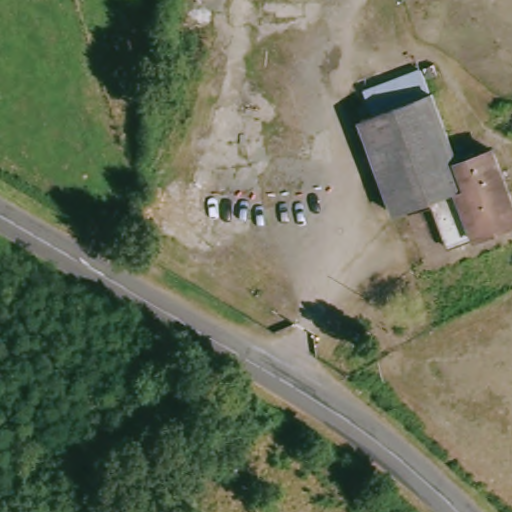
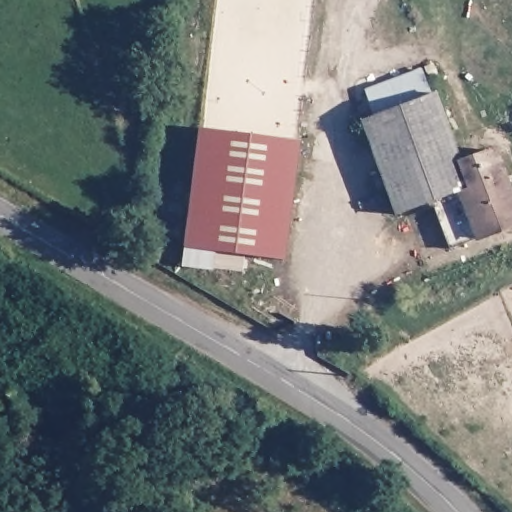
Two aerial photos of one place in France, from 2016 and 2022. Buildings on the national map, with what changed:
unchanged [(411,68),(419,90),(369,111),(360,87),(411,68)]
unchanged [(369,111),(419,90),(446,160),(482,147),(512,221),(445,248),(424,203),(393,215),(354,117),(369,111)]
new [(183,248),(198,128),(298,141),(284,260),(183,248)]

